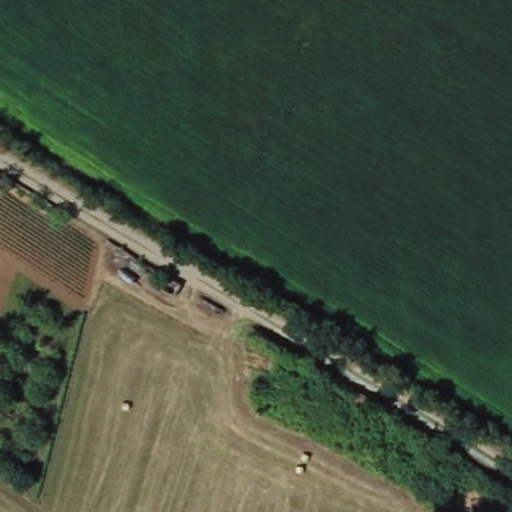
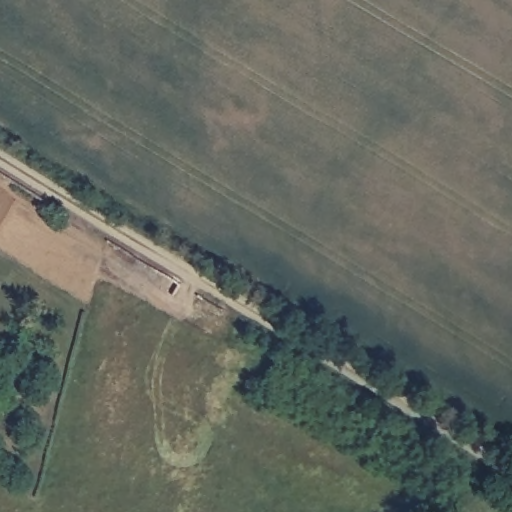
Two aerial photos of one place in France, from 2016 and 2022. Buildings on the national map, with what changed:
unchanged [(182,286),(176,299),(159,289),(166,276),(182,286)]

